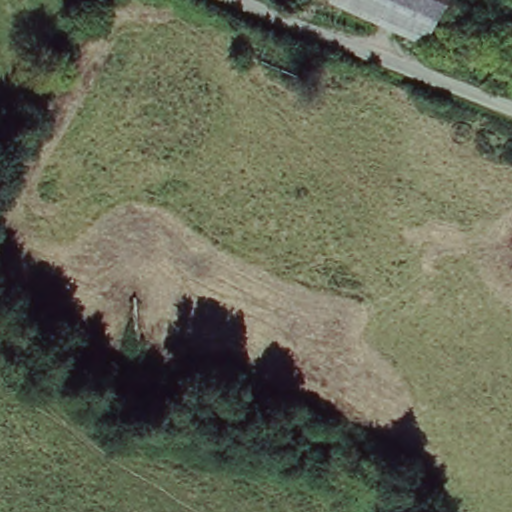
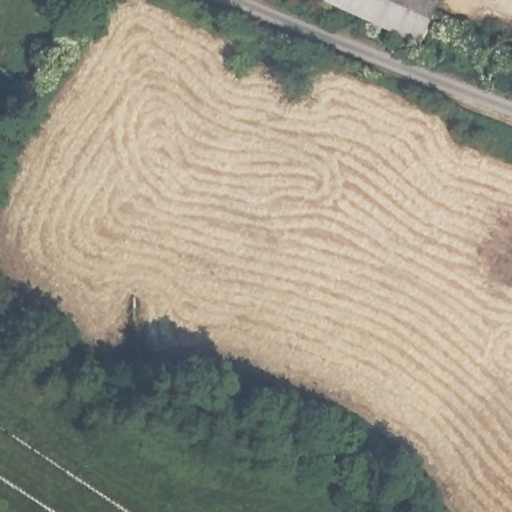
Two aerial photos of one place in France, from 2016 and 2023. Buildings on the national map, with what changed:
unchanged [(442,0),(427,42),(327,6),(330,0),(442,0)]

